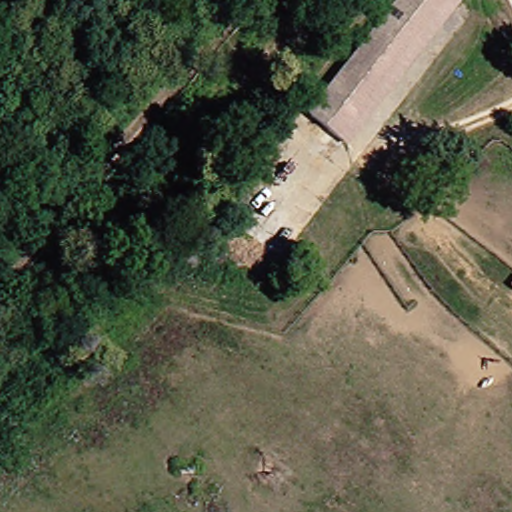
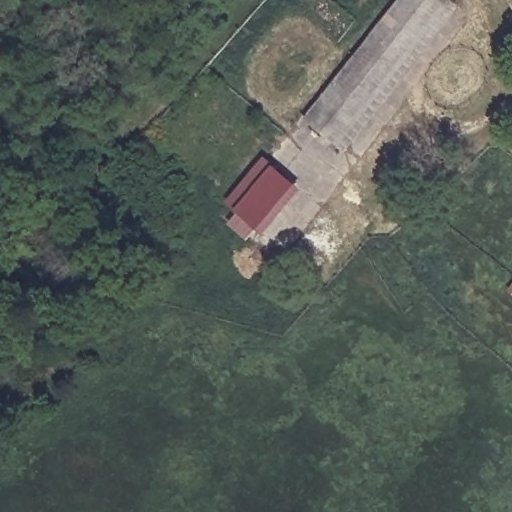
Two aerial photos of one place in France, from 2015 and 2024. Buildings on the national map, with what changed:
unchanged [(353,144),(319,119),(414,0),(453,0),(459,5),(353,144)]
new [(266,236),(261,231),(252,242),(231,224),(239,213),(228,204),(266,158),(304,190),(266,236)]

